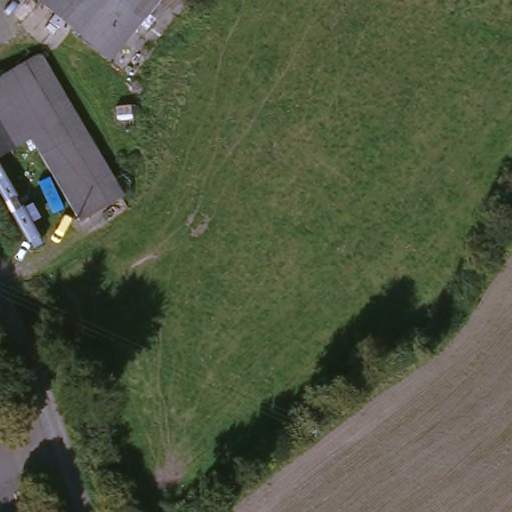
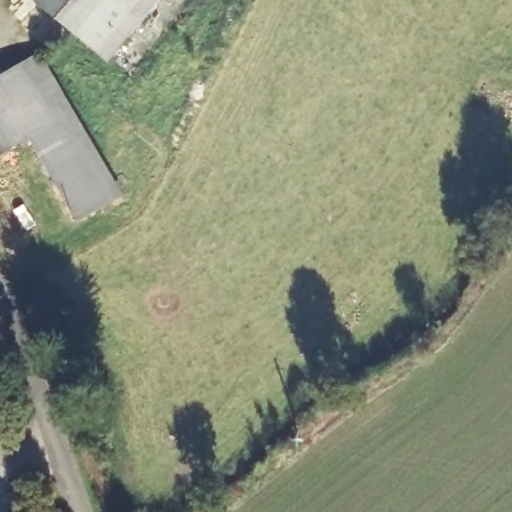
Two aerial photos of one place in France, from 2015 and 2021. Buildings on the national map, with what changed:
unchanged [(104,69),(20,0),(162,0),(104,69)]
unchanged [(26,72),(44,64),(116,211),(97,221),(64,150),(26,72)]
unchanged [(27,146),(0,158),(0,85),(26,72),(64,150),(35,164),(27,146)]
unchanged [(97,221),(68,235),(35,164),(64,150),(97,221)]

